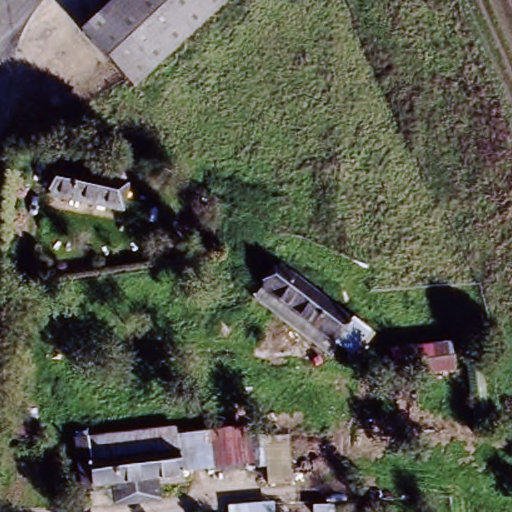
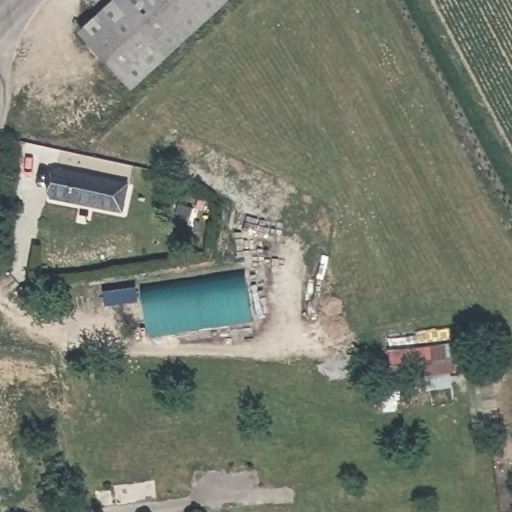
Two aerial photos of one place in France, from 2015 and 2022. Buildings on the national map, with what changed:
unchanged [(141,83),(134,90),(80,32),(114,0),(231,0),(141,83)]
unchanged [(50,202),(57,170),(115,183),(117,169),(131,172),(122,217),(50,202)]
demolished [(363,321),(344,347),(332,338),(325,347),(248,291),(274,255),(363,321)]
new [(245,271),(255,318),(151,335),(142,288),(245,271)]
unchanged [(451,342),(455,372),(393,380),(390,350),(451,342)]
unchanged [(460,367),(476,364),(483,411),(492,410),(495,429),(470,429),(460,367)]
demolished [(153,483),(155,500),(107,507),(105,486),(85,489),(82,467),(72,468),(68,440),(170,426),(172,435),(243,426),(245,440),(257,438),(261,438),(263,468),(153,483)]

